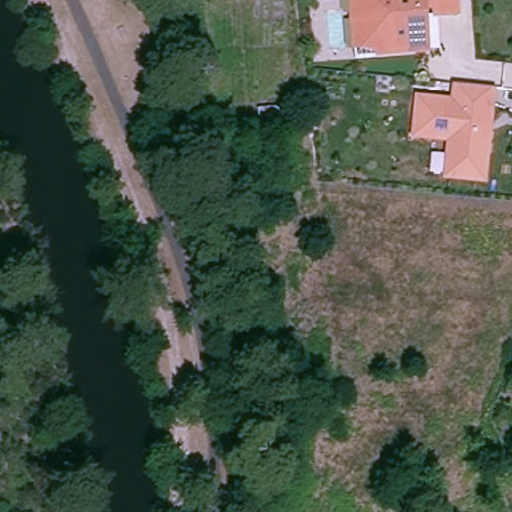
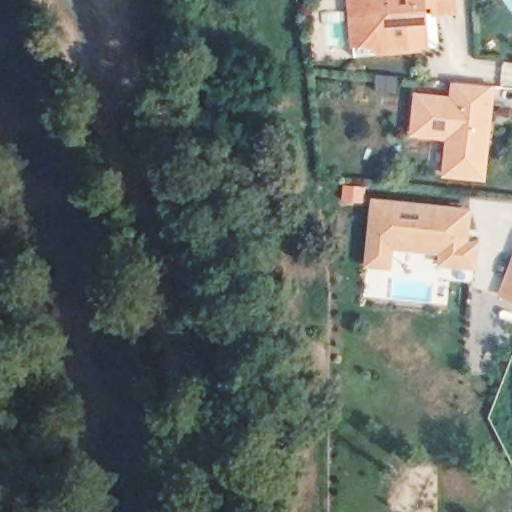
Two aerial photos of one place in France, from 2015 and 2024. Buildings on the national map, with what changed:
unchanged [(428,46),(355,50),(355,41),(352,14),(352,0),(458,0),(458,9),(437,10),(439,45),(428,46)]
unchanged [(446,173),(450,136),(414,132),(418,95),(455,99),(457,81),(494,85),(490,122),(488,134),(483,177),(446,173)]
new [(471,209),(468,241),(479,242),(477,272),(437,268),(438,255),(395,251),(392,271),(363,268),(371,198),(471,209)]
new [(512,257),(512,303),(497,297),(512,257)]

